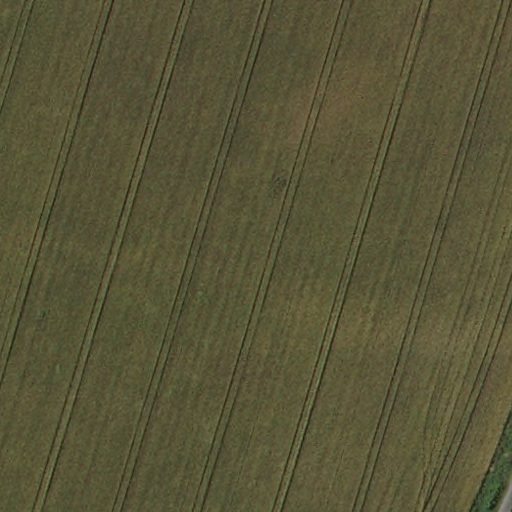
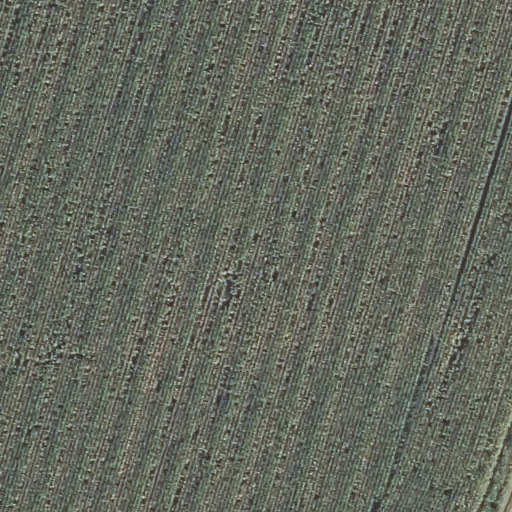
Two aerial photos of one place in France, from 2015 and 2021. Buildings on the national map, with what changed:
[]

